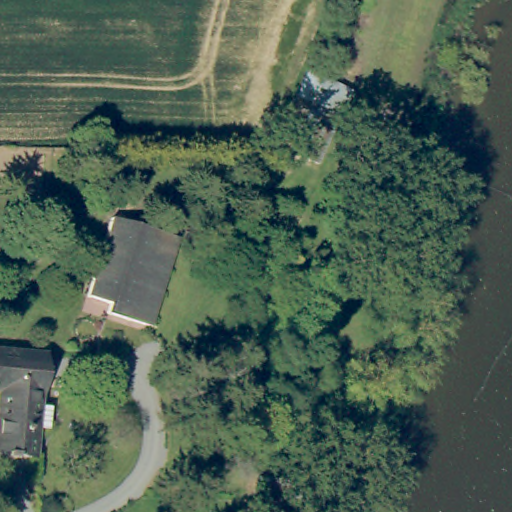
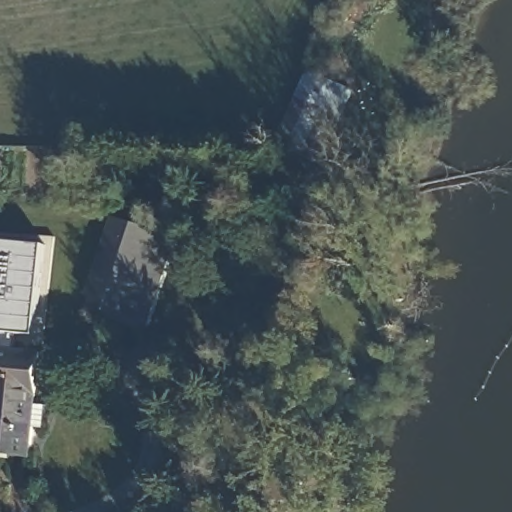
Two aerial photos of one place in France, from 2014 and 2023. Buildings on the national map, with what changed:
unchanged [(351,91),(317,164),(274,145),(274,144),(289,111),(308,72),(351,91)]
unchanged [(153,323),(109,310),(112,298),(91,292),(114,214),(158,229),(180,236),(177,247),(153,323)]
new [(36,337),(0,333),(0,242),(45,247),(36,337)]
unchanged [(37,425),(34,455),(0,451),(0,346),(45,352),(39,403),(52,405),(47,427),(37,425)]

